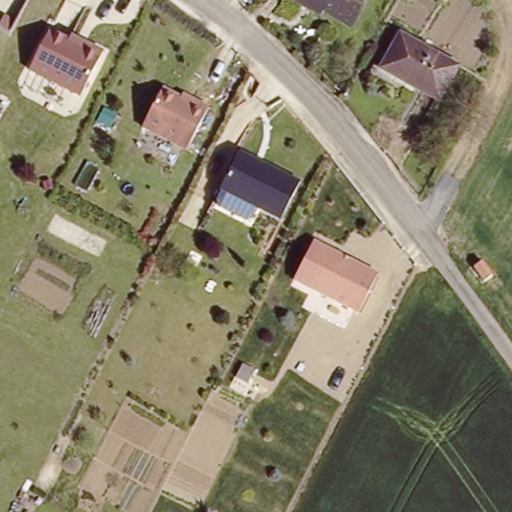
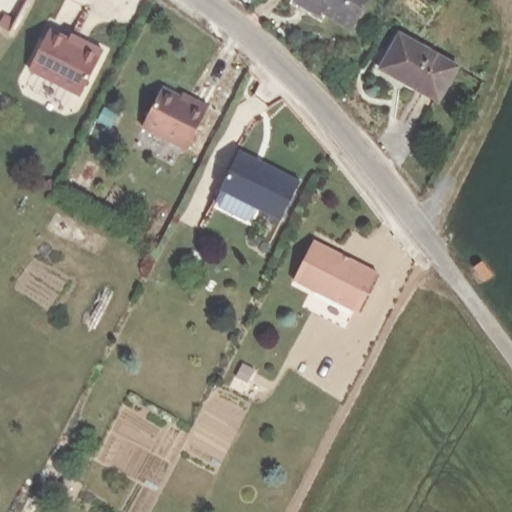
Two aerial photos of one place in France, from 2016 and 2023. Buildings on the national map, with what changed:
unchanged [(301,0),(370,0),(357,24),(330,9),(327,15),(301,0)]
unchanged [(15,26),(8,39),(6,38),(0,34),(0,21),(2,18),(15,26)]
unchanged [(65,39),(68,34),(82,42),(100,51),(77,96),(27,70),(47,29),(65,39)]
unchanged [(404,31),(461,65),(442,98),(385,64),(404,31)]
unchanged [(185,149),(181,147),(174,160),(134,140),(141,126),(137,124),(157,85),(177,95),(179,91),(190,97),(207,106),(185,149)]
unchanged [(298,183),(277,221),(253,208),(250,216),(244,218),(218,204),(216,199),(220,191),(218,189),(238,151),(298,183)]
unchanged [(310,242),(375,275),(355,313),(291,279),(310,242)]

